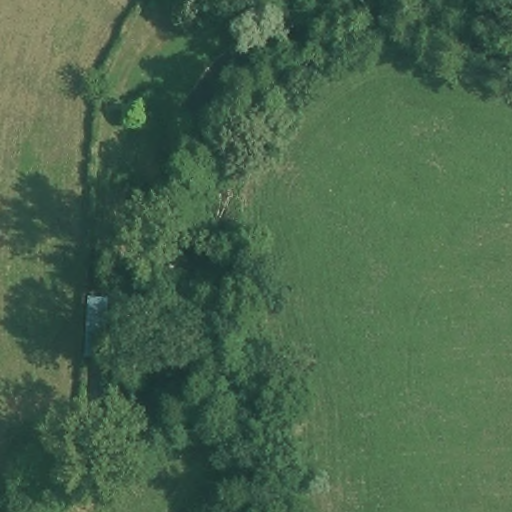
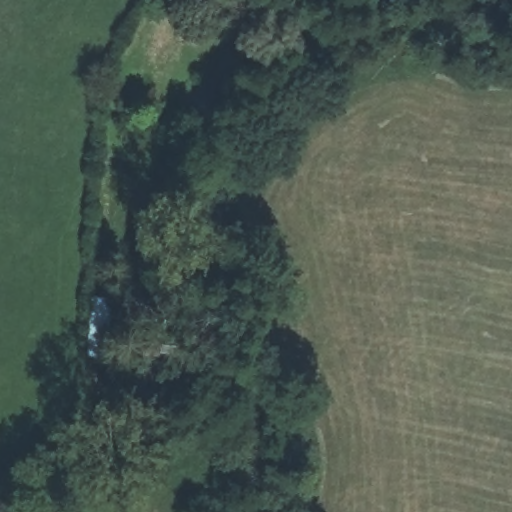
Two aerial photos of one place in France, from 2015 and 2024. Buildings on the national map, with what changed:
unchanged [(93,300),(119,301),(119,364),(92,364),(93,300)]

